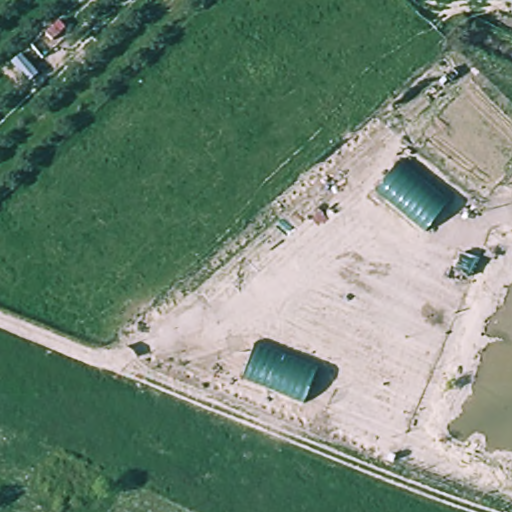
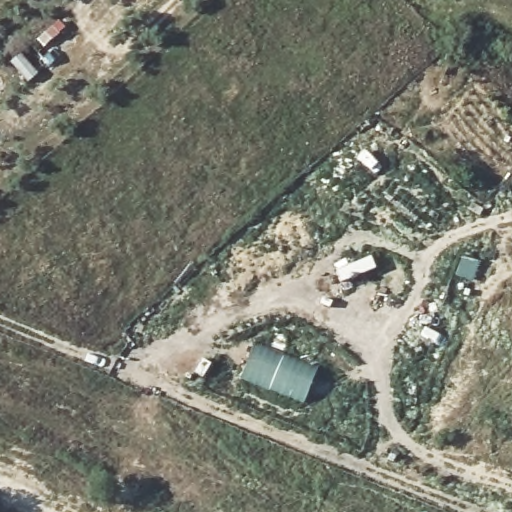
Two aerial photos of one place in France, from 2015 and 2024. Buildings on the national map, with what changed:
unchanged [(401,166),(449,205),(425,229),(383,189),(401,166)]
unchanged [(248,375),(256,348),(314,371),(303,397),(248,375)]

